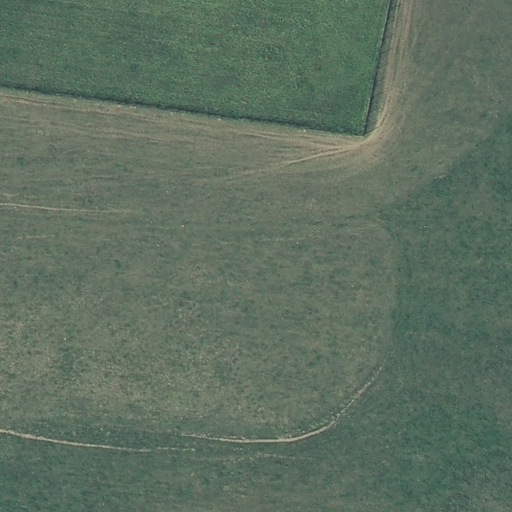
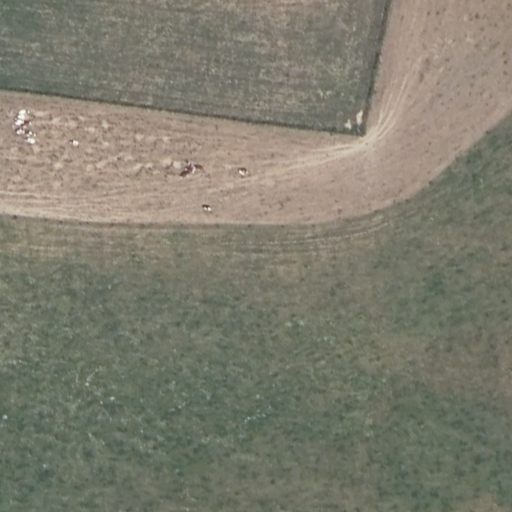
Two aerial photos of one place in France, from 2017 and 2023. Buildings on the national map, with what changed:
[]

